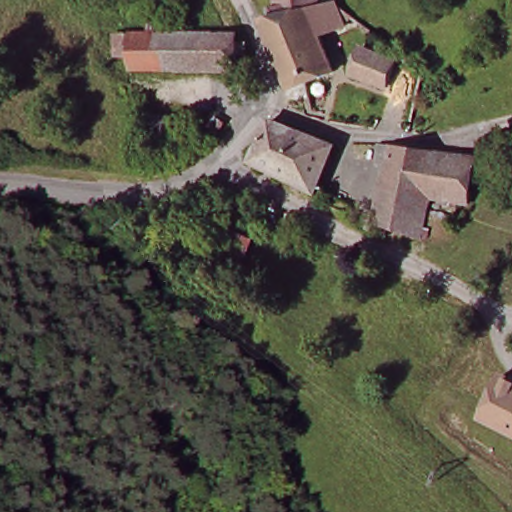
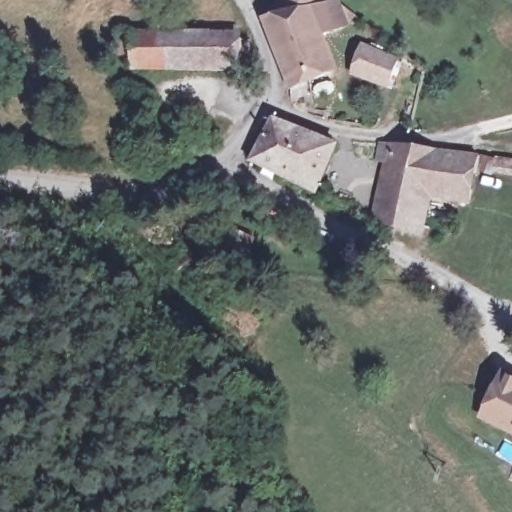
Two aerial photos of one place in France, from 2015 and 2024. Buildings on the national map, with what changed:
unchanged [(281,13),(279,0),(324,0),(324,4),(281,13)]
unchanged [(324,4),(338,1),(358,15),(363,19),(325,31),(340,70),(302,81),(272,15),(280,13),(281,13),(324,4)]
unchanged [(160,68),(140,69),(139,59),(121,60),(118,33),(136,32),(155,30),(153,11),(172,10),(175,29),(211,26),(238,25),(240,61),(160,68)]
unchanged [(397,62),(394,82),(355,74),(360,53),(397,62)]
unchanged [(148,110),(169,111),(168,150),(157,151),(146,142),(148,110)]
unchanged [(314,193),(252,158),(257,148),(270,119),(285,123),(335,141),(314,193)]
unchanged [(383,163),(371,158),(376,141),(402,141),(470,153),(479,155),(470,212),(459,210),(424,202),(420,232),(416,248),(370,220),(383,163)]
unchanged [(338,229),(335,236),(328,252),(314,245),(321,228),(325,222),(338,229)]
unchanged [(257,243),(250,259),(222,245),(230,229),(257,243)]
unchanged [(512,375),(512,429),(481,414),(502,370),(512,375)]

